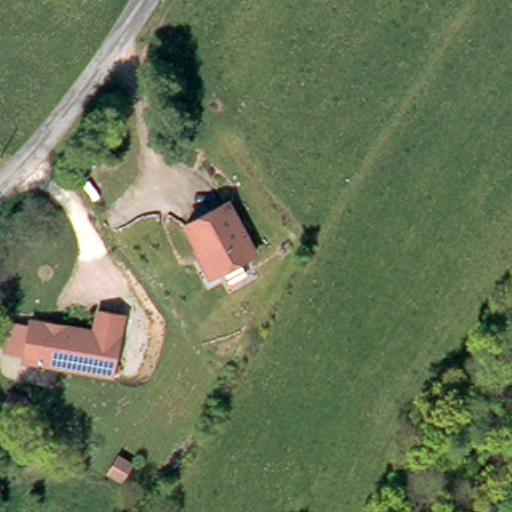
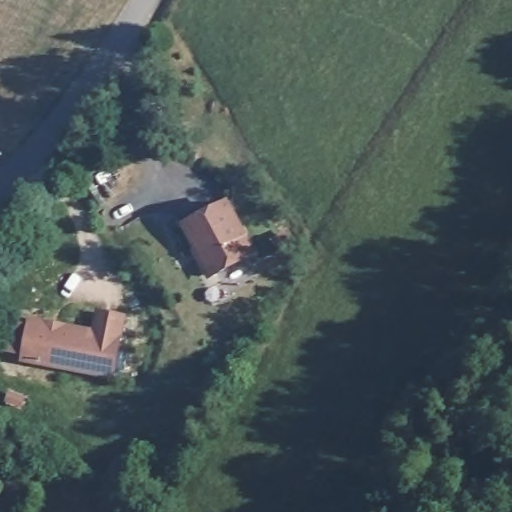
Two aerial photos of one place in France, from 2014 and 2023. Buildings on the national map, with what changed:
unchanged [(260,254),(212,279),(182,224),(230,200),(260,254)]
unchanged [(115,374),(21,363),(24,353),(1,349),(9,315),(26,320),(28,316),(96,327),(100,310),(125,315),(115,374)]

